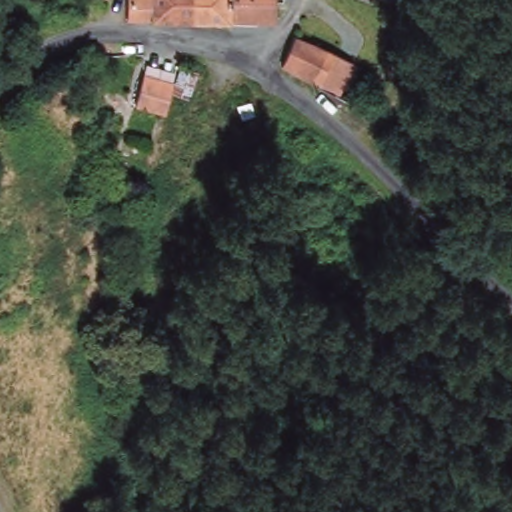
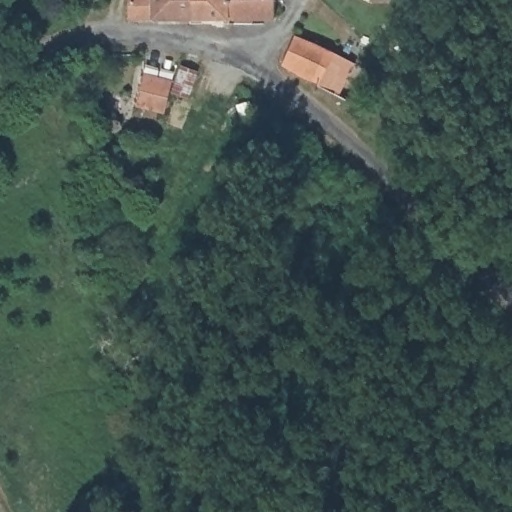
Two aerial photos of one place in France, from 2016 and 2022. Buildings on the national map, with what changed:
unchanged [(226,20),(206,20),(185,19),(151,19),(124,20),(124,7),(124,0),(226,0),(226,20)]
unchanged [(272,21),(226,20),(226,0),(272,0),(272,21)]
unchanged [(370,1),(366,0),(371,0),(370,1)]
unchanged [(307,76),(301,72),(272,58),(285,33),(314,47),(354,67),(337,99),(305,80),(307,76)]
unchanged [(192,71),(183,97),(168,92),(177,66),(192,71)]
unchanged [(139,74),(169,81),(161,112),(131,105),(139,74)]
unchanged [(250,101),(254,113),(243,117),(238,105),(250,101)]
unchanged [(295,134),(302,122),(313,130),(307,140),(295,134)]

